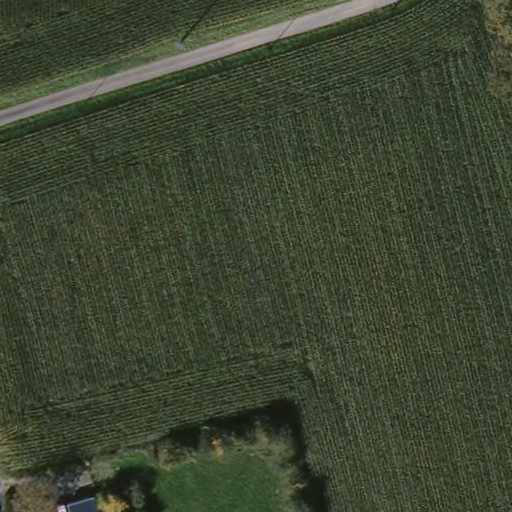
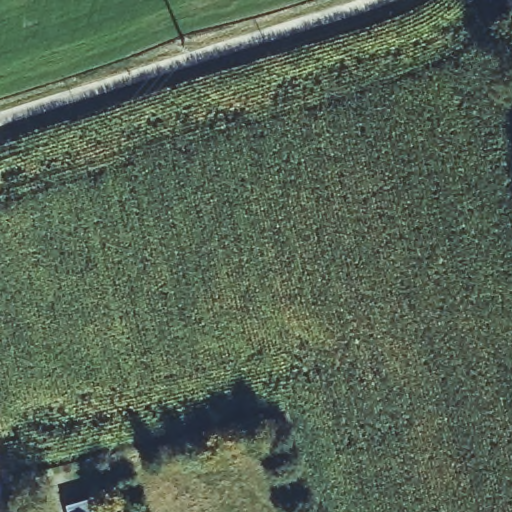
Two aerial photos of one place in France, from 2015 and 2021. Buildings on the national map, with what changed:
unchanged [(85,456),(90,470),(39,479),(36,466),(85,456)]
unchanged [(95,501),(99,512),(71,512),(70,508),(95,501)]

